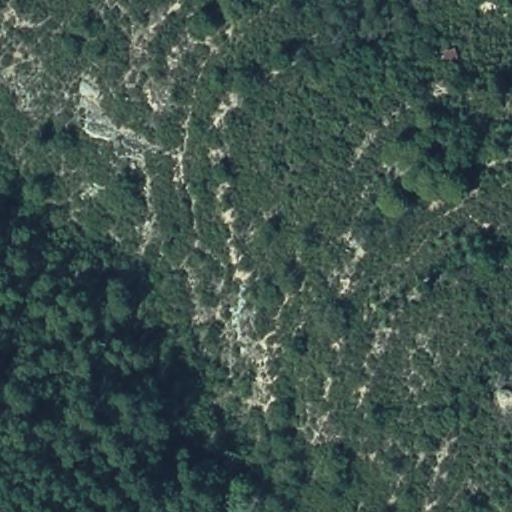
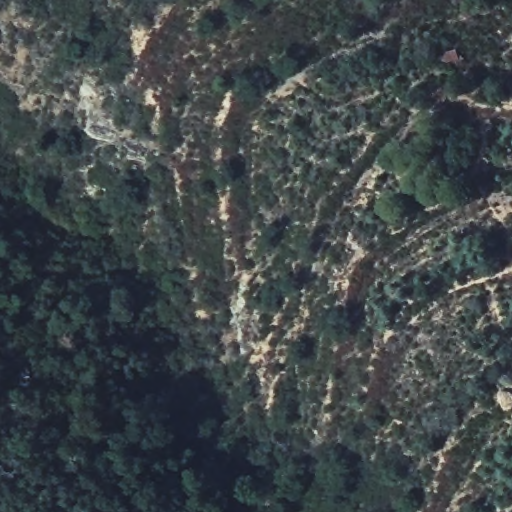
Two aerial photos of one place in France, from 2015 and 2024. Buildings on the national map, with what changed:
unchanged [(512,385),(512,409),(507,412),(497,397),(512,385)]

